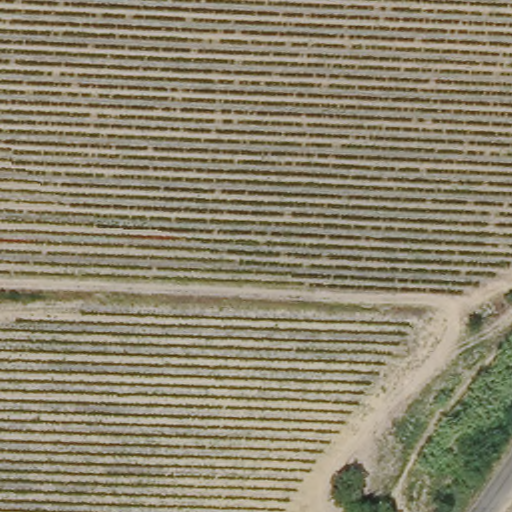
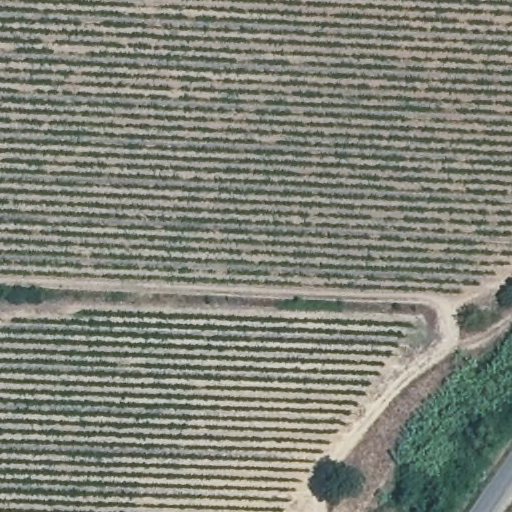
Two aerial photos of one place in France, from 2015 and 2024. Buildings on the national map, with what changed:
unchanged [(496,318),(486,327),(476,314),(484,307),(487,310),(496,318)]

